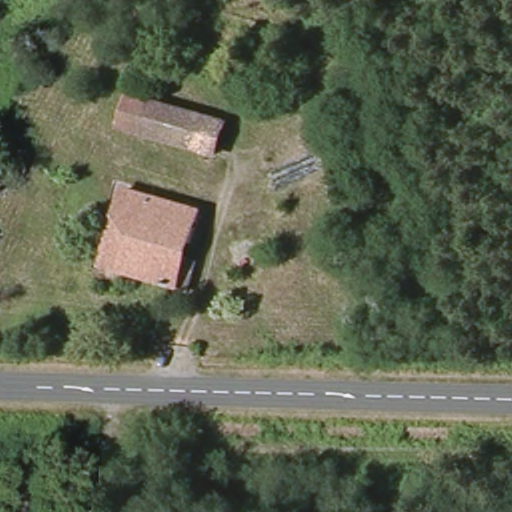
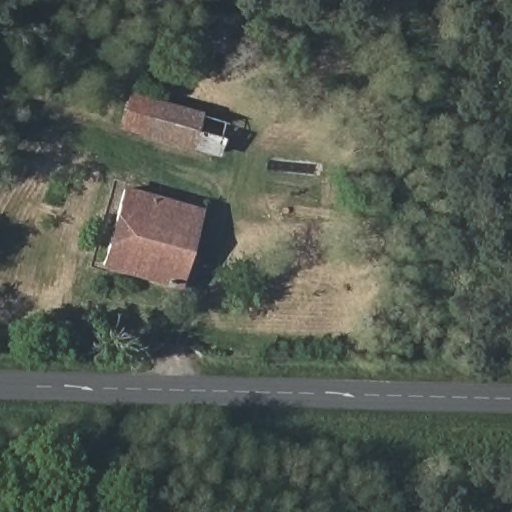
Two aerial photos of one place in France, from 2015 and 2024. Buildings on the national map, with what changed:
unchanged [(125,130),(131,93),(234,123),(221,164),(125,130)]
unchanged [(352,190),(354,165),(383,166),(381,191),(352,190)]
unchanged [(110,274),(126,200),(207,215),(189,290),(110,274)]

